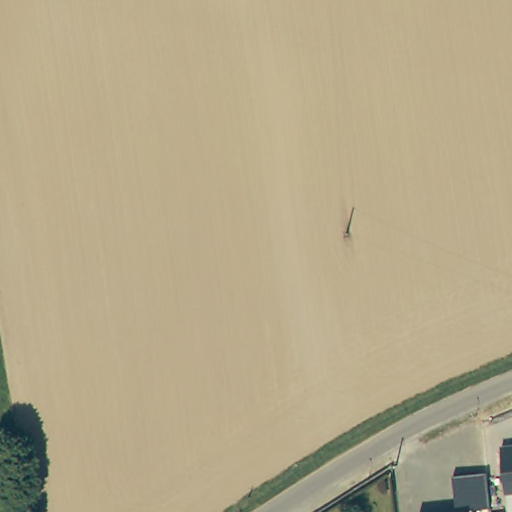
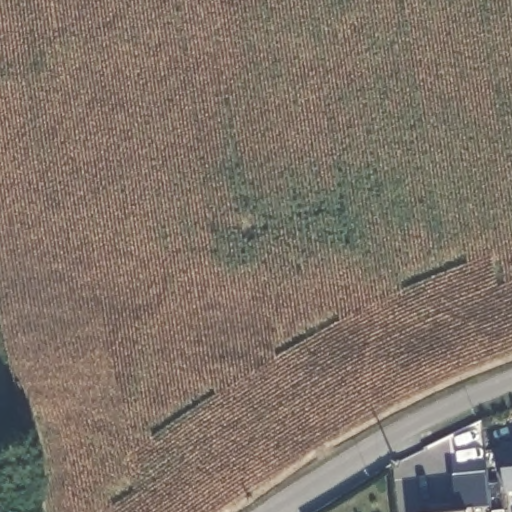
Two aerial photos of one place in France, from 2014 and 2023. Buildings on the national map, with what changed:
unchanged [(503,492),(500,445),(512,445),(512,492),(503,492)]
unchanged [(472,509),(473,512),(460,512),(455,477),(487,474),(490,507),(472,509)]

